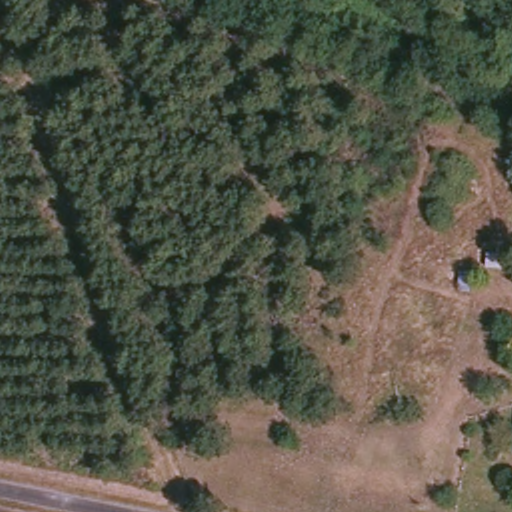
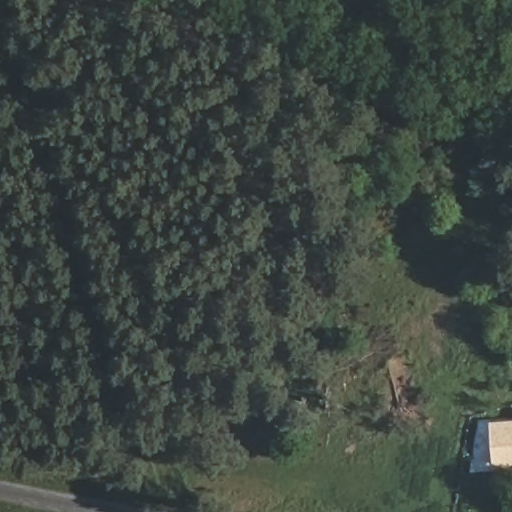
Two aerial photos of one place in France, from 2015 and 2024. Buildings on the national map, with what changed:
unchanged [(504,270),(487,269),(488,253),(506,253),(504,270)]
unchanged [(474,274),(472,301),(461,302),(462,272),(474,274)]
new [(490,421),(512,420),(512,463),(492,465),(490,421)]

